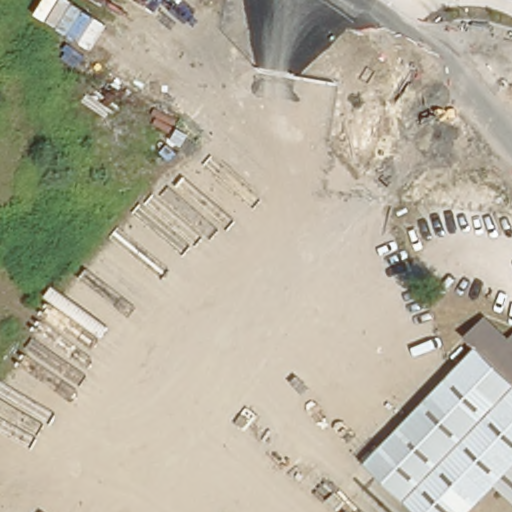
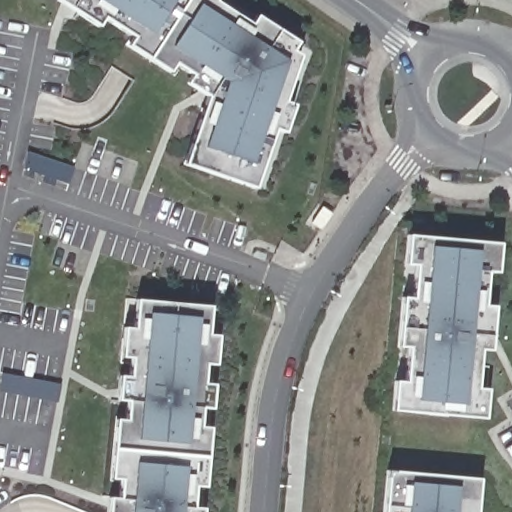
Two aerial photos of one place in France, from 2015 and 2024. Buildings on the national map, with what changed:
new [(184,164),(205,96),(185,83),(191,75),(175,64),(170,73),(126,45),(132,37),(104,18),(98,27),(56,0),(217,0),(215,2),(250,23),(256,16),(297,42),(292,50),(300,56),(285,102),(295,105),(285,134),(275,131),(255,189),(184,164)]
new [(497,273),(487,273),(485,305),(494,306),(490,352),(480,351),(476,388),(486,388),(483,419),(391,411),(394,381),(405,382),(407,348),(397,347),(402,298),(412,298),(415,266),(404,265),(407,234),(500,243),(497,273)]
new [(219,335),(215,366),(205,365),(203,383),(214,384),(210,409),(201,409),(200,426),(210,427),(204,487),(193,486),(191,506),(202,508),(202,512),(106,512),(108,497),(118,498),(120,480),(110,479),(116,419),(125,420),(127,401),(117,399),(120,375),(130,376),(132,358),(121,357),(124,328),(134,329),(136,299),(210,305),(208,334),(219,335)]
demolished [(467,338),(485,318),(506,338),(512,332),(512,381),(476,348),(467,338)]
new [(383,512),(386,469),(478,478),(475,512),(383,512)]

